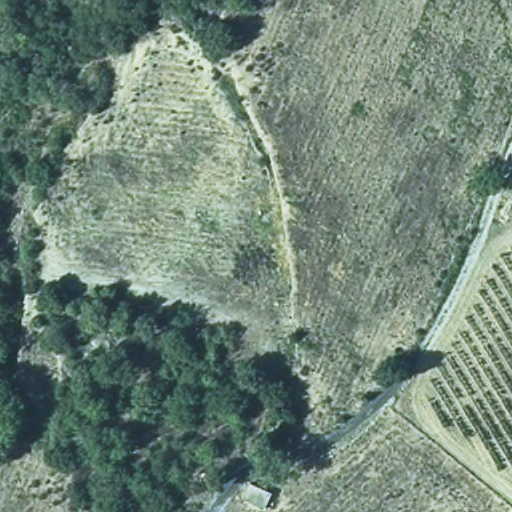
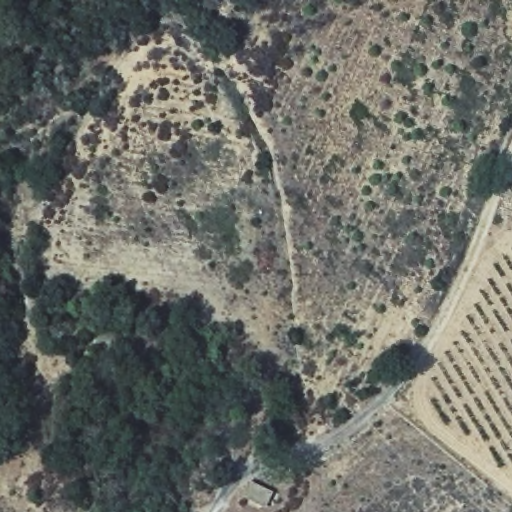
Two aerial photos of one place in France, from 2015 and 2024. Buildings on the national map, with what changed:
unchanged [(271,495),(267,507),(248,499),(251,488),(271,495)]

